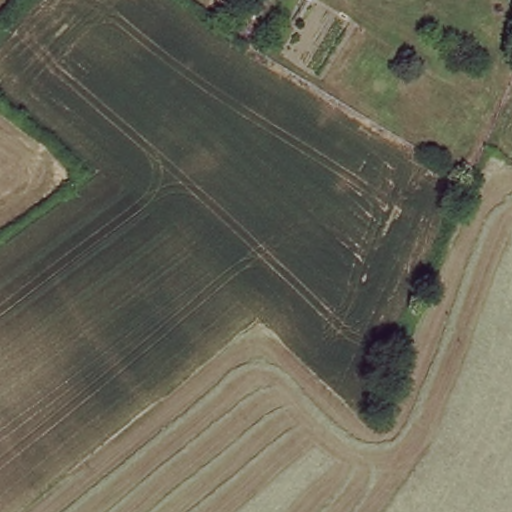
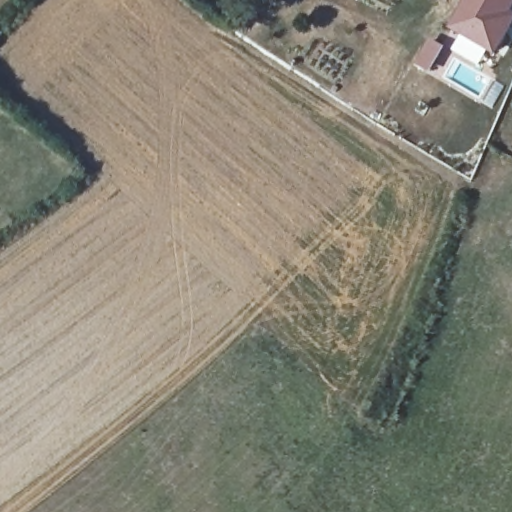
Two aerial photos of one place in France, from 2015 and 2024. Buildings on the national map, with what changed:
new [(465,0),(512,0),(512,29),(497,54),(450,27),(465,0)]

